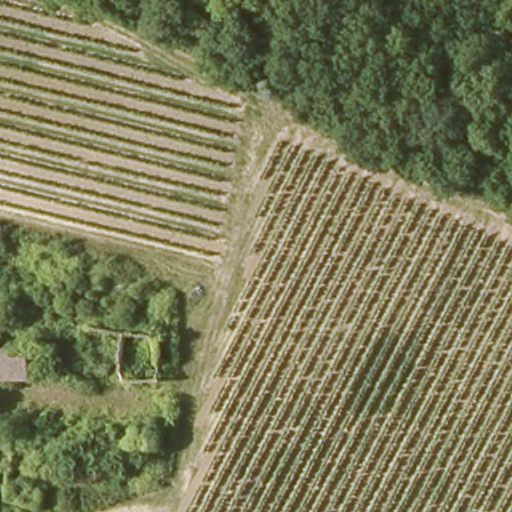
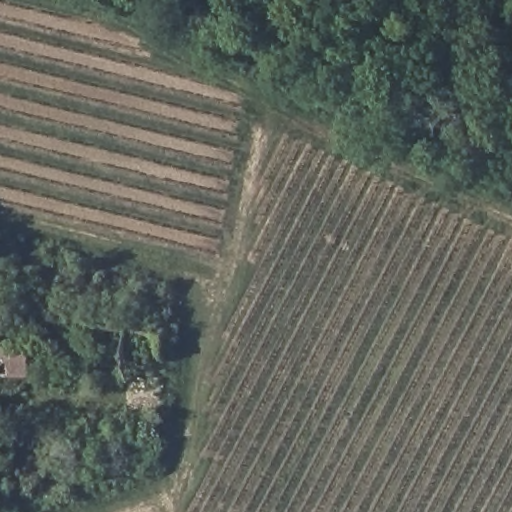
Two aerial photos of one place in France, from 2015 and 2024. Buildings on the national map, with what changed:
unchanged [(1,347),(37,347),(34,381),(0,381),(0,324),(1,324),(1,347)]

